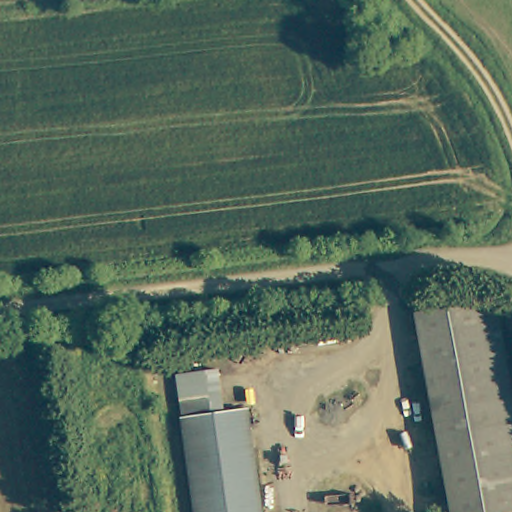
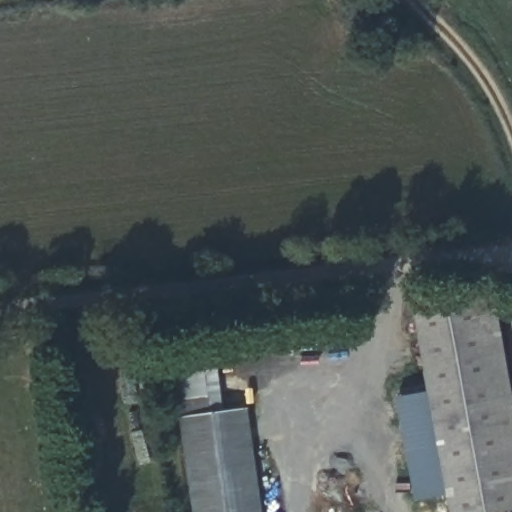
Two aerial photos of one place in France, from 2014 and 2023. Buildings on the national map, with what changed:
unchanged [(412,309),(497,295),(512,374),(512,512),(511,512),(448,512),(412,309)]
unchanged [(209,414),(207,397),(184,400),(186,416),(180,417),(175,372),(219,368),(225,412),(209,414)]
new [(445,494),(415,500),(395,397),(427,392),(445,494)]
unchanged [(245,409),(259,512),(198,512),(184,400),(207,397),(209,414),(245,409)]

